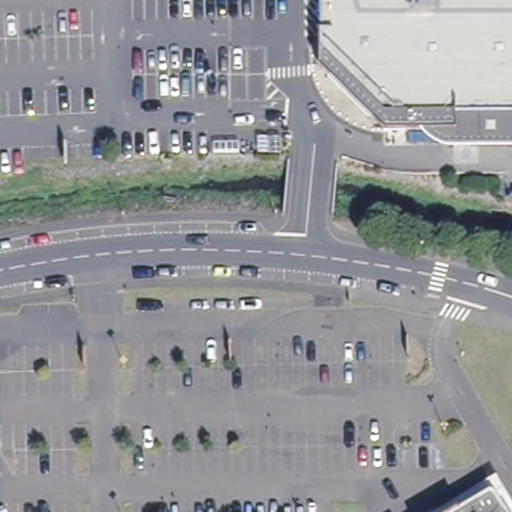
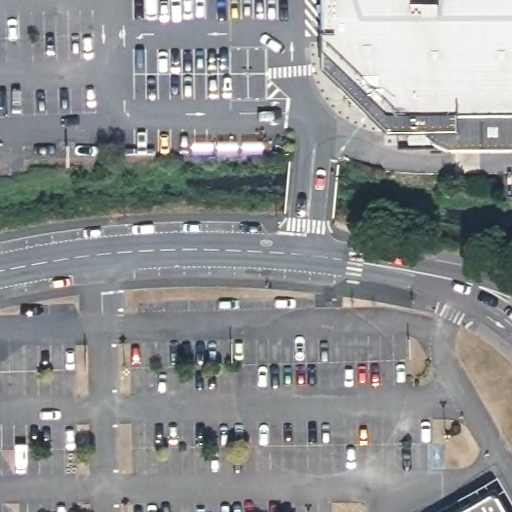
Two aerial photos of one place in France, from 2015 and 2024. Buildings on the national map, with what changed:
unchanged [(456,132),(386,134),(386,117),(322,50),(321,0),(512,0),(512,147),(456,147),(456,132)]
unchanged [(507,512),(440,512),(490,483),(507,512)]

